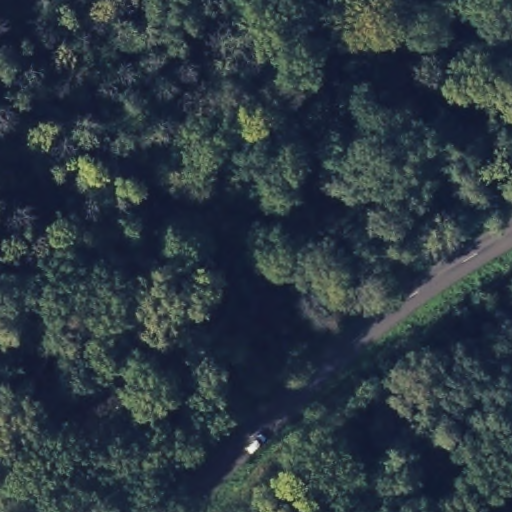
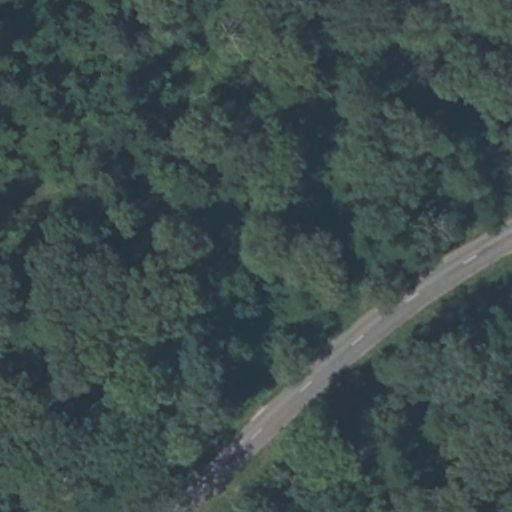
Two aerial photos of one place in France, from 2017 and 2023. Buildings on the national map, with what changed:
unchanged [(55,343),(42,384),(20,375),(37,335),(55,343)]

